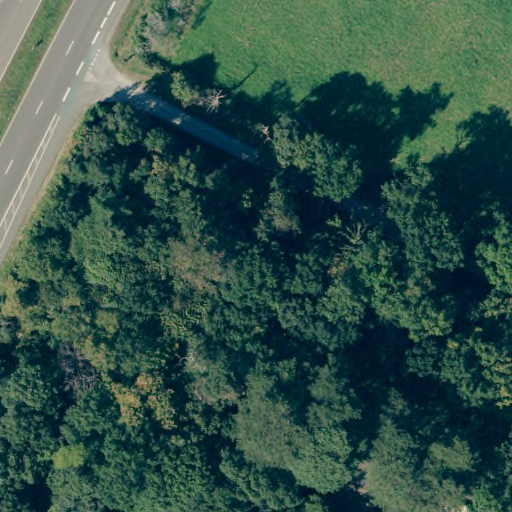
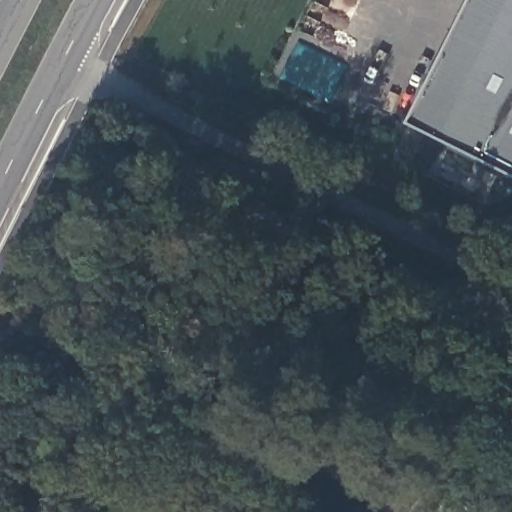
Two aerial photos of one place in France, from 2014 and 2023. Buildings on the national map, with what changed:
new [(471,0),(512,0),(512,175),(410,125),(471,0)]

